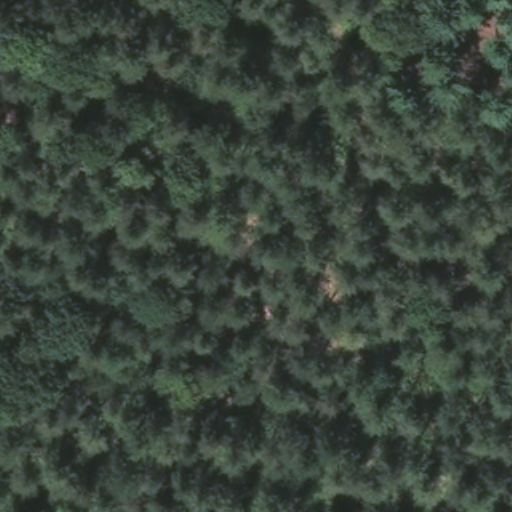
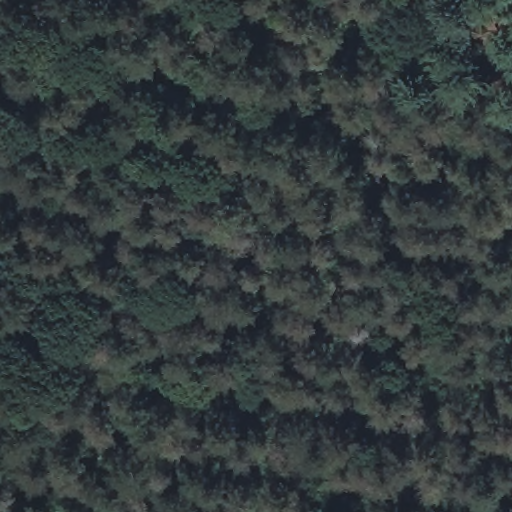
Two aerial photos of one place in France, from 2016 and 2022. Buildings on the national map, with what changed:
[]

